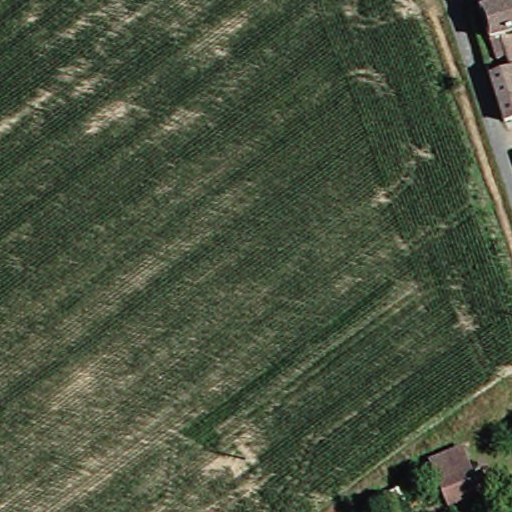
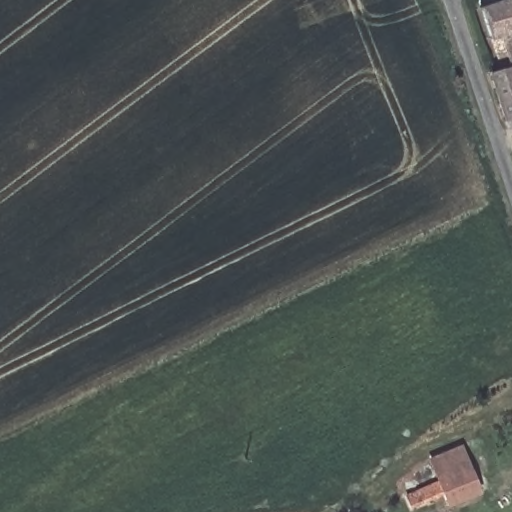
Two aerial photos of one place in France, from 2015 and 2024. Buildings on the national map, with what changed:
unchanged [(499,47),(486,14),(512,4),(512,42),(502,46),(499,47)]
unchanged [(510,70),(512,74),(512,125),(493,79),(510,70)]
unchanged [(481,494),(454,507),(447,487),(436,460),(464,448),(474,475),(481,494)]

